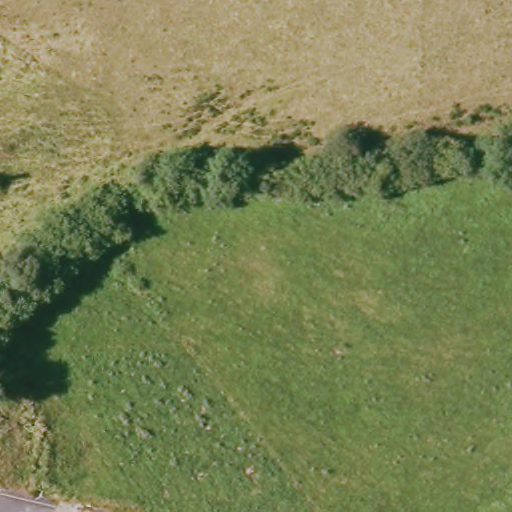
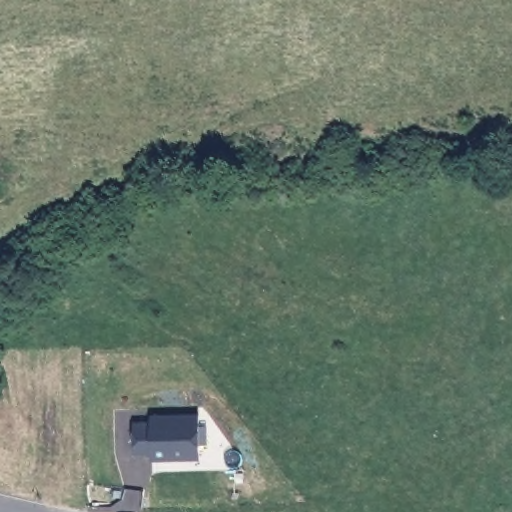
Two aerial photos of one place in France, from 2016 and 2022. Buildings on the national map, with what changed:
new [(151,459),(151,454),(132,454),(131,420),(151,420),(150,416),(198,415),(200,460),(151,459)]

